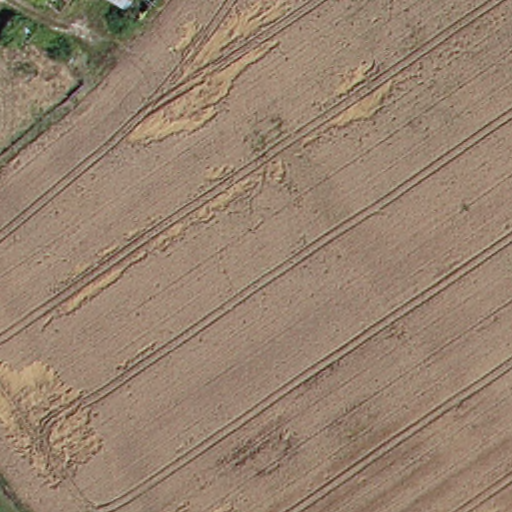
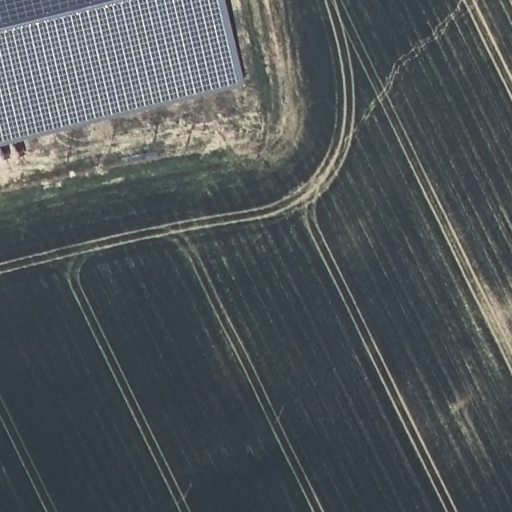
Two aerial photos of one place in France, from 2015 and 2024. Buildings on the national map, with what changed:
new [(0,148),(0,0),(223,0),(243,87),(0,148)]
demolished [(66,9),(55,0),(74,0),(66,9)]
demolished [(145,17),(121,0),(158,0),(145,17)]
demolished [(61,42),(40,71),(11,50),(31,22),(61,42)]

